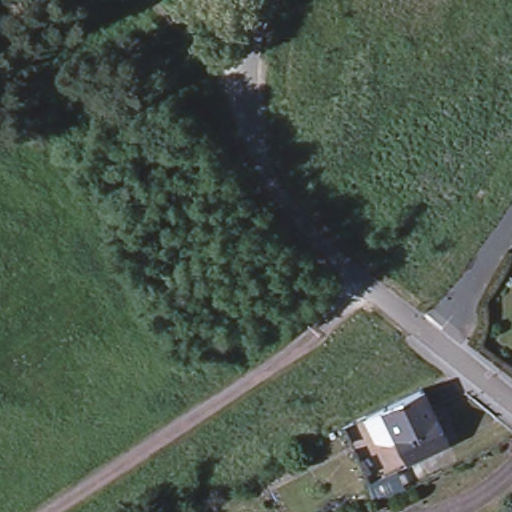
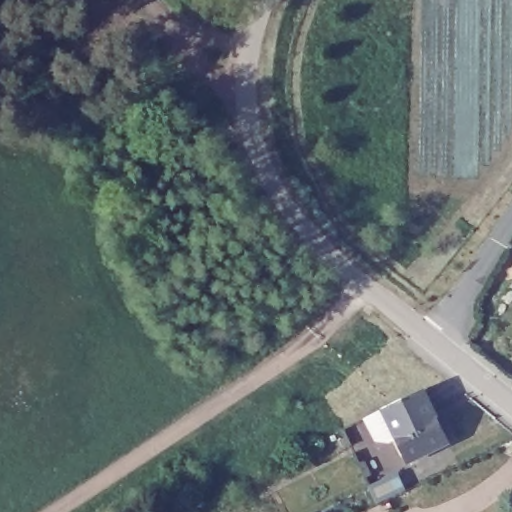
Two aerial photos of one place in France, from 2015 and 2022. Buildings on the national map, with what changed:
unchanged [(451,447),(413,465),(397,433),(381,441),(371,420),(387,413),(426,394),(451,447)]

